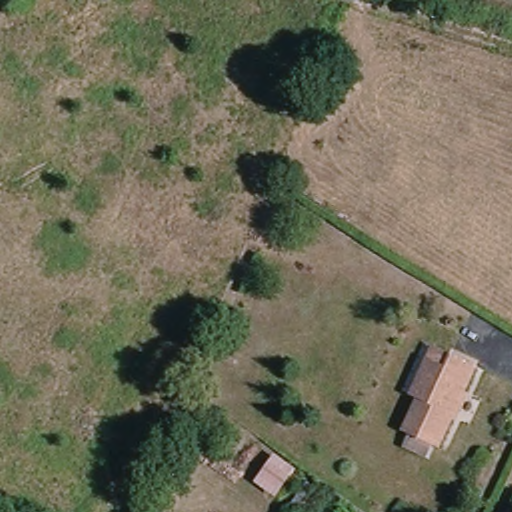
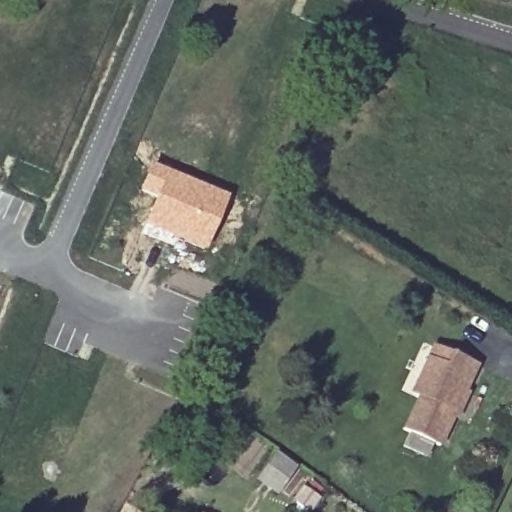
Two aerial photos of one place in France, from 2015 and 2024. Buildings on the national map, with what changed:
new [(148,164),(228,195),(205,252),(142,225),(152,199),(136,191),(148,164)]
unchanged [(422,388),(417,385),(434,350),(451,359),(457,347),(480,360),(467,386),(461,385),(452,402),(455,410),(441,439),(407,420),(422,388)]
unchanged [(292,502),(304,487),(317,496),(305,512),(284,512),(292,502)]

